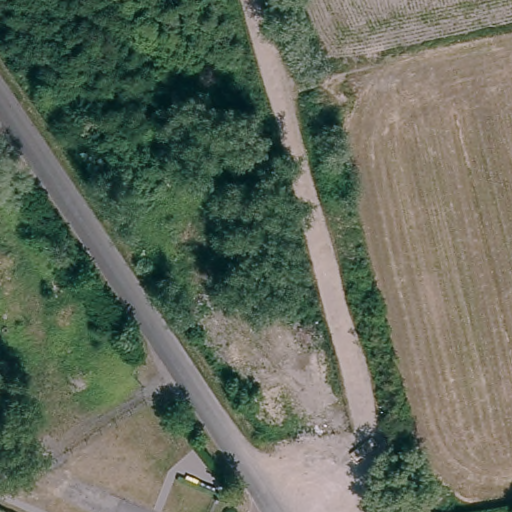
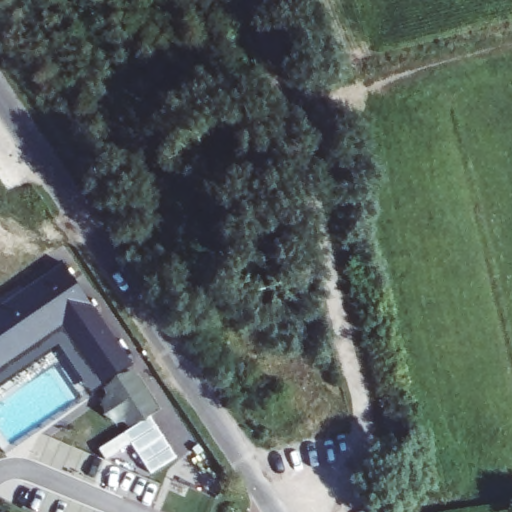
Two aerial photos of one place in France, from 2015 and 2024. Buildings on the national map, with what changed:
new [(0,385),(0,307),(63,264),(132,365),(92,393),(59,345),(0,385)]
new [(132,365),(159,407),(129,427),(125,422),(117,424),(106,415),(101,403),(106,394),(102,386),(132,365)]

